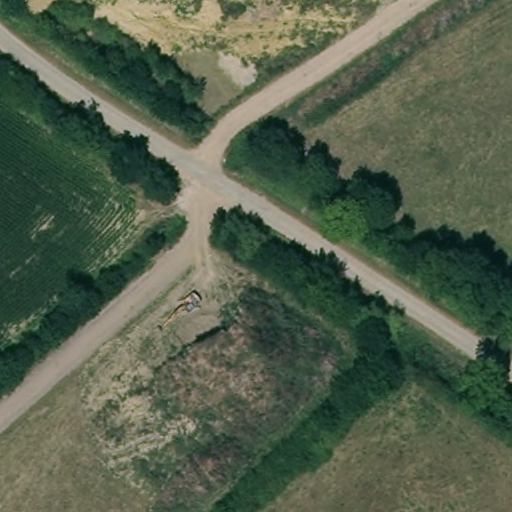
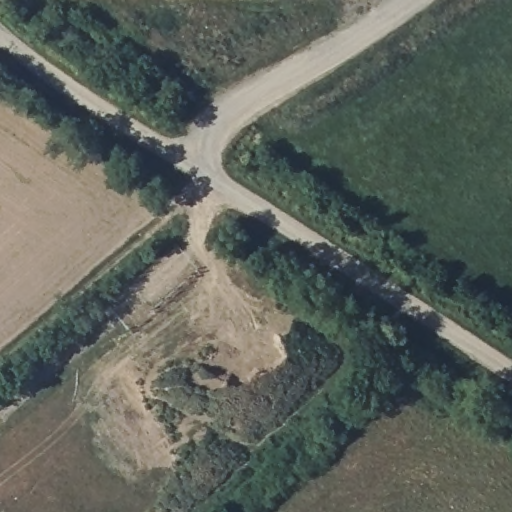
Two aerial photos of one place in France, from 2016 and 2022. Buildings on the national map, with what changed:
[]

